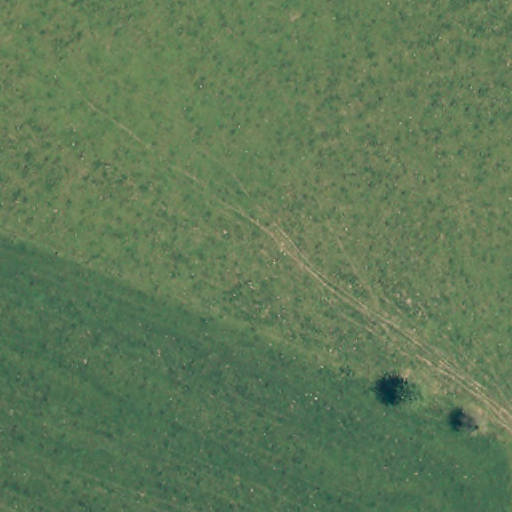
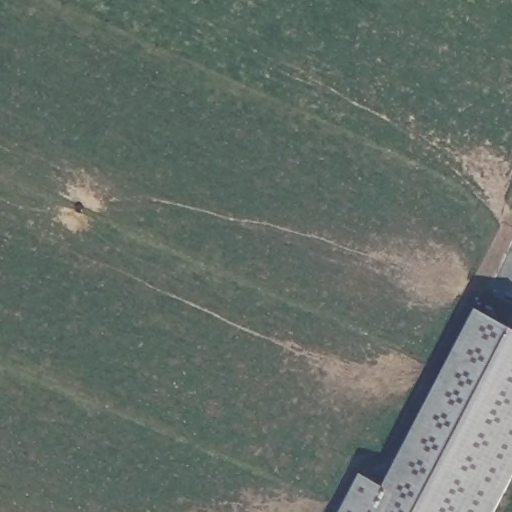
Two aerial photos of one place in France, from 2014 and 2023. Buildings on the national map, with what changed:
new [(363,472),(389,485),(478,307),(512,324),(512,480),(495,512),(343,512),(363,472)]

